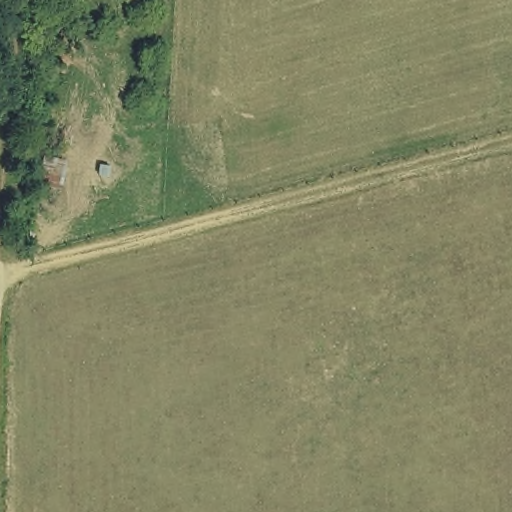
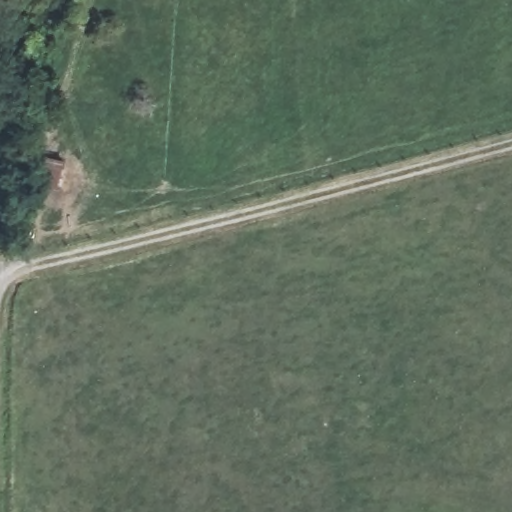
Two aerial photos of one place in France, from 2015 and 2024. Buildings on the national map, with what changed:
unchanged [(35,189),(41,148),(66,152),(59,190),(35,189)]

